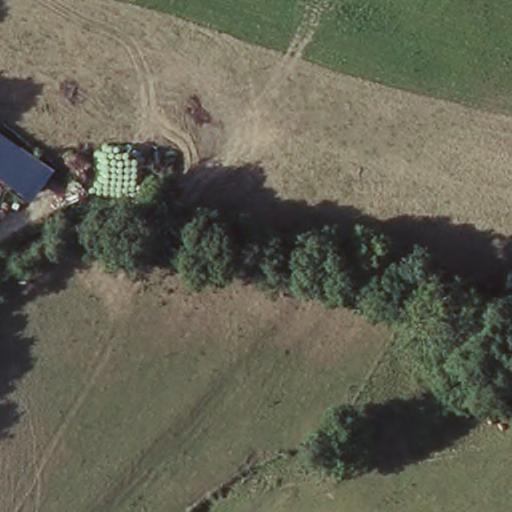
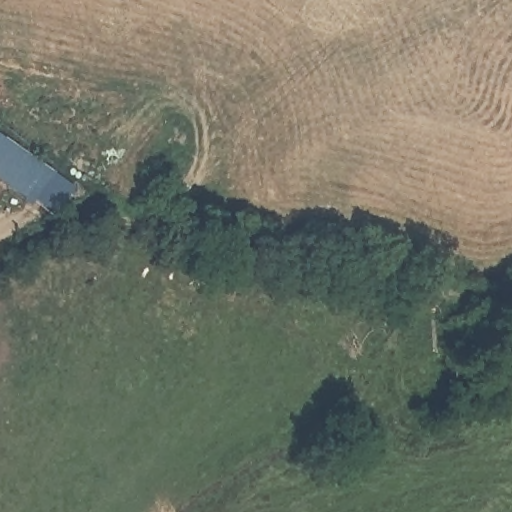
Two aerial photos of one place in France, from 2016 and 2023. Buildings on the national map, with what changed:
unchanged [(55,173),(31,207),(0,183),(0,134),(55,173)]

